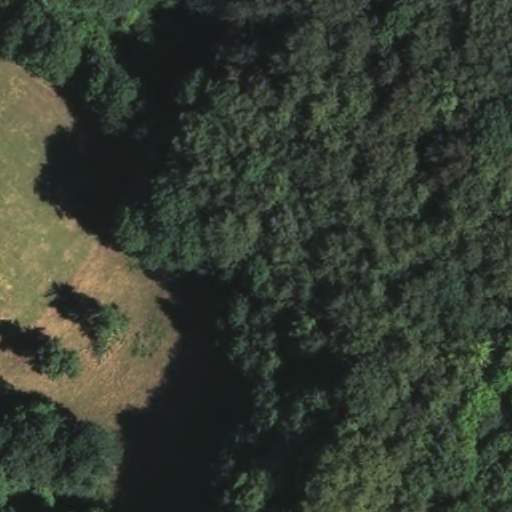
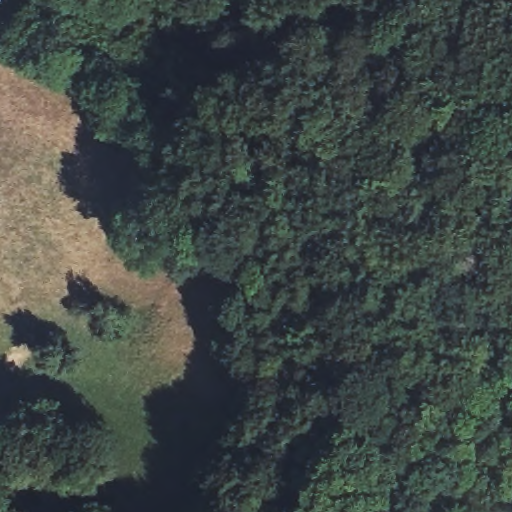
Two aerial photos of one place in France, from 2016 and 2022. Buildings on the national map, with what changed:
unchanged [(0,512),(0,497),(40,480),(52,512),(0,512)]

